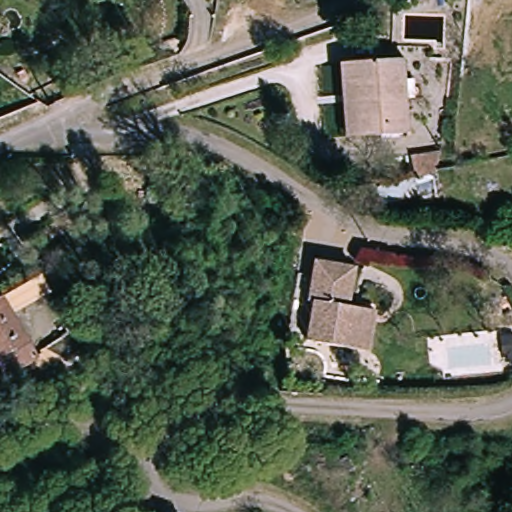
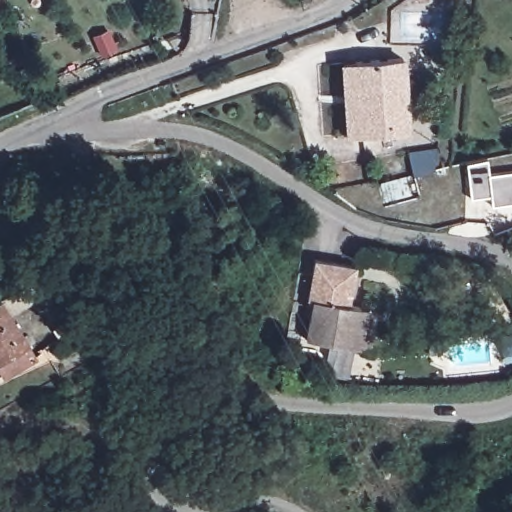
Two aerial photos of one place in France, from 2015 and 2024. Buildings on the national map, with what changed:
unchanged [(411,1),(411,0),(416,0),(411,1)]
unchanged [(407,57),(407,131),(350,131),(350,57),(407,57)]
unchanged [(435,156),(439,179),(410,184),(406,161),(435,156)]
new [(512,169),(512,201),(492,204),(490,194),(473,197),(469,193),(466,161),(486,157),(489,171),(512,169)]
unchanged [(359,353),(319,347),(312,345),(319,306),(313,305),(320,266),(332,267),(360,272),(353,311),(366,313),(380,316),(374,356),(359,353)]
unchanged [(6,292),(42,357),(5,382),(0,373),(0,295),(6,292)]

